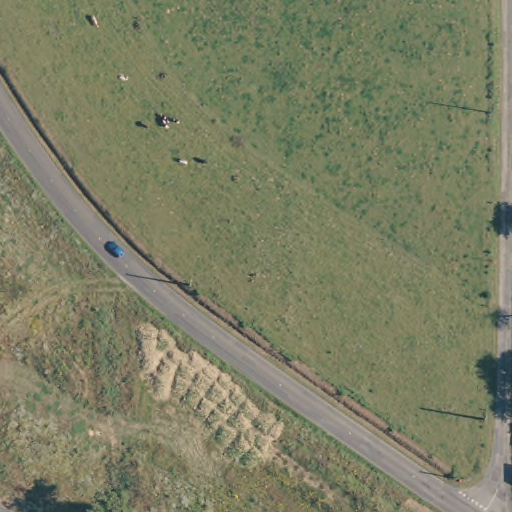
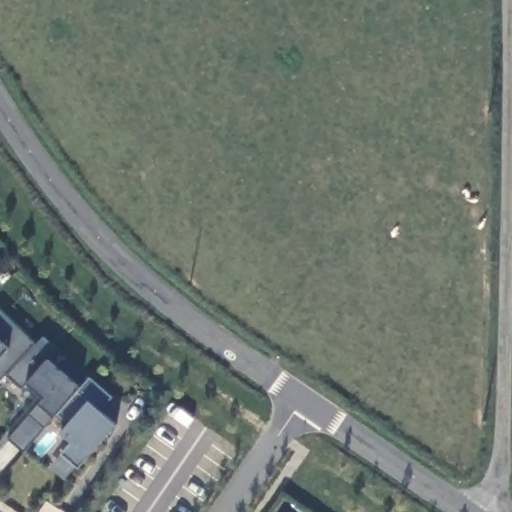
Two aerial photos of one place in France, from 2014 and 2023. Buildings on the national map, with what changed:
new [(44,335),(58,347),(50,360),(80,387),(90,376),(113,396),(102,410),(118,424),(90,456),(78,467),(65,477),(51,467),(62,455),(74,442),(61,431),(70,422),(59,412),(55,417),(24,452),(9,438),(40,402),(45,396),(27,381),(22,387),(7,374),(0,381),(0,308),(36,343),(44,335)]

